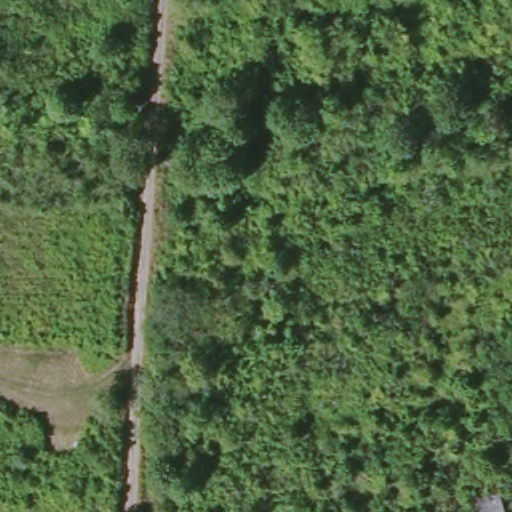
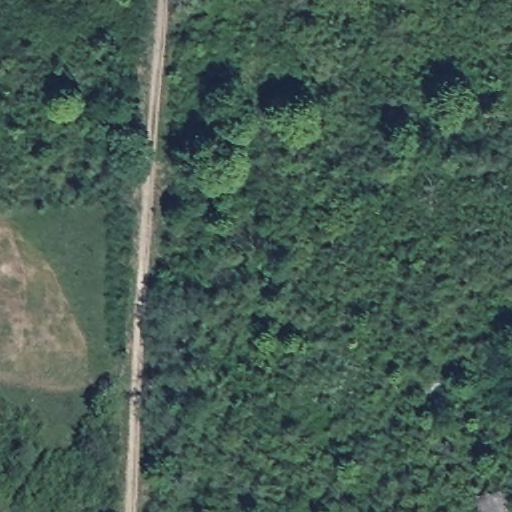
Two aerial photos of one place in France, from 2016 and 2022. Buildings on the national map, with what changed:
unchanged [(504,493),(509,512),(482,512),(480,499),(504,493)]

